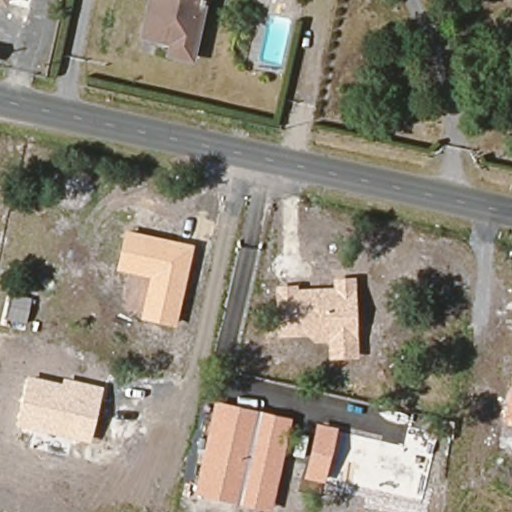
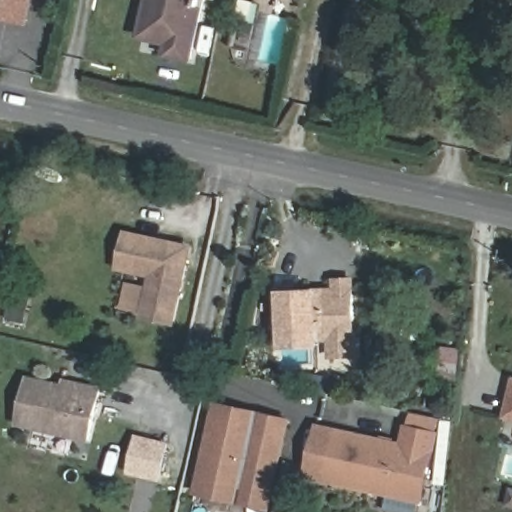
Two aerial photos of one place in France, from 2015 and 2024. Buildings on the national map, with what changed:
unchanged [(0,4),(0,0),(7,0),(6,5),(0,4)]
new [(7,0),(32,0),(27,23),(0,17),(0,4),(6,5),(7,0)]
unchanged [(163,57),(166,46),(148,40),(155,0),(208,0),(193,65),(163,57)]
unchanged [(194,244),(177,326),(140,318),(149,276),(115,269),(126,230),(194,244)]
unchanged [(359,358),(328,358),(327,341),(315,342),(309,336),(277,336),(275,284),(297,283),(297,288),(333,286),(333,279),(356,276),(359,358)]
new [(460,348),(457,379),(438,377),(441,346),(460,348)]
unchanged [(62,383),(63,377),(103,386),(91,441),(17,426),(27,376),(62,383)]
unchanged [(505,417),(512,387),(512,419),(505,417)]
unchanged [(291,418),(271,509),(194,493),(212,401),(291,418)]
new [(406,411),(440,417),(417,512),(393,512),(386,510),(389,497),(304,478),(316,422),(400,441),(406,411)]
new [(126,474),(136,433),(170,442),(160,482),(126,474)]

